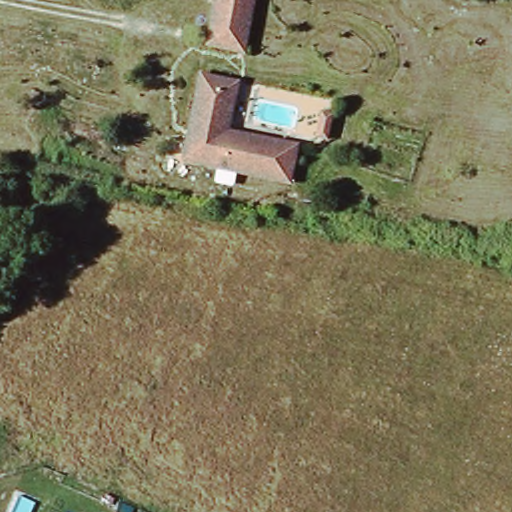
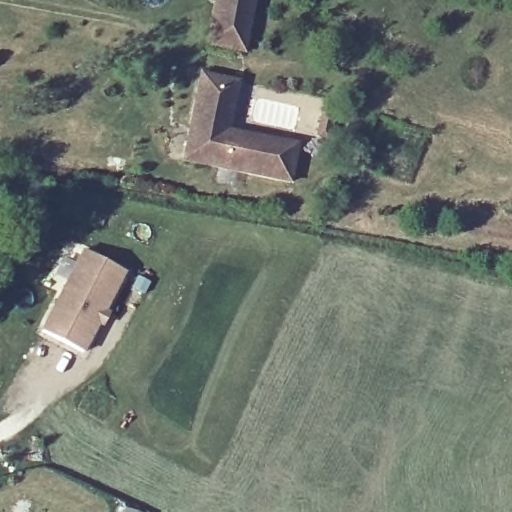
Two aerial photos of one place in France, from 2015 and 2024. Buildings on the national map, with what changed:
unchanged [(248,56),(212,47),(223,0),(260,0),(248,56)]
unchanged [(206,77),(244,85),(234,133),(304,148),(295,186),(188,163),(206,77)]
unchanged [(300,136),(250,125),(255,99),(306,110),(300,136)]
unchanged [(328,116),(339,117),(334,142),(322,140),(328,116)]
new [(106,313),(110,315),(104,327),(99,325),(85,354),(40,331),(83,251),(125,273),(106,313)]

